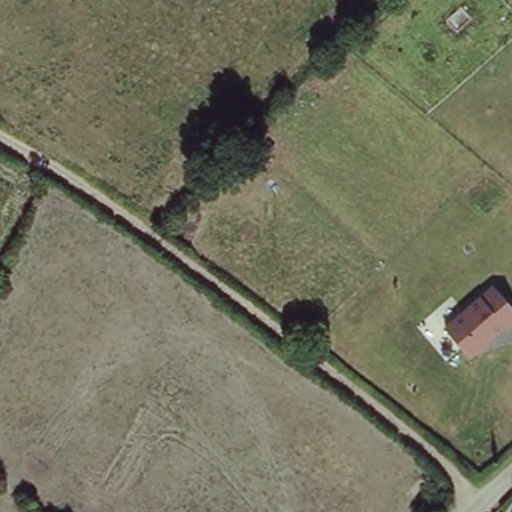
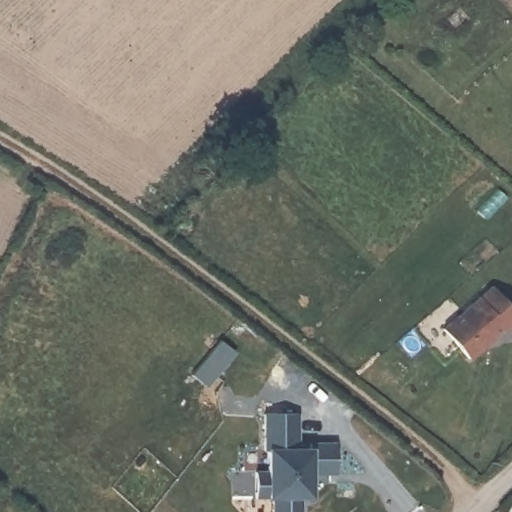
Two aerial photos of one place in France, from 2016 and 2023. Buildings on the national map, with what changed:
unchanged [(445,323),(499,284),(512,303),(512,323),(473,355),(445,323)]
new [(302,448),(312,447),(311,442),(338,443),(338,475),(313,472),(312,498),(304,499),(303,512),(273,512),(274,498),(269,498),(269,496),(257,497),(257,468),(263,468),(265,415),(301,413),(302,448)]
unchanged [(512,505),(512,512),(504,512),(506,503),(512,505)]

